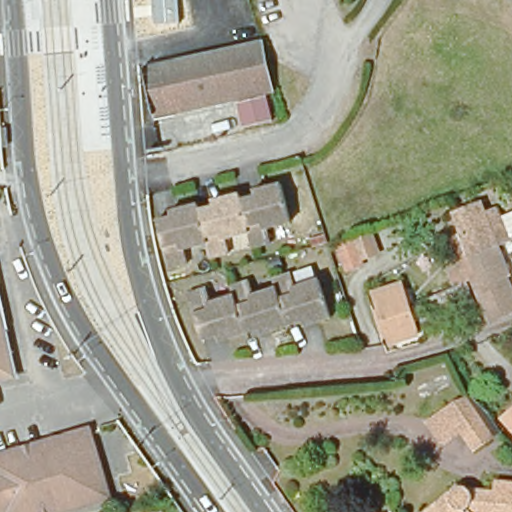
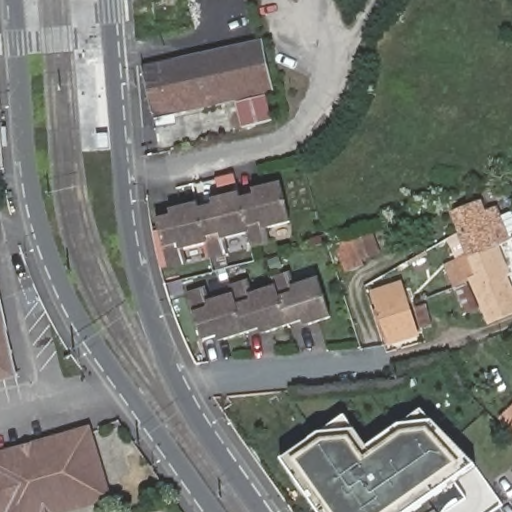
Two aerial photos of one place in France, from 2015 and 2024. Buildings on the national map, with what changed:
unchanged [(168,58),(180,55),(184,54),(191,53),(252,39),(258,38),(262,36),(273,85),(155,111),(144,63),(168,58)]
unchanged [(266,91),(272,116),(242,124),(236,100),(266,91)]
unchanged [(171,218),(170,212),(197,206),(199,211),(212,208),(211,202),(239,195),(241,200),(254,197),(252,191),(281,185),(292,225),(264,233),(262,226),(248,229),(250,235),(222,243),(221,237),(206,240),(207,246),(182,253),(181,247),(164,251),(156,222),(171,218)]
unchanged [(442,273),(464,265),(455,242),(447,221),(478,209),(483,220),(495,216),(502,234),(491,239),(497,252),(512,293),(512,314),(487,324),(483,313),(461,322),(451,297),(442,273)]
unchanged [(329,249),(343,244),(365,236),(372,256),(350,264),(352,268),(337,273),(329,249)]
unchanged [(194,310),(208,305),(206,299),(235,291),(237,302),(250,297),(249,292),(277,283),(280,294),(292,289),(291,284),(320,275),(332,315),(304,325),(302,320),(288,324),(260,328),(246,332),(240,333),(219,340),(217,334),(202,339),(194,310)]
unchanged [(370,297),(404,287),(420,334),(386,346),(370,297)]
unchanged [(0,372),(0,338),(7,370),(0,372)]
unchanged [(277,400),(282,397),(285,403),(281,406),(277,400)]
demolished [(457,419),(467,409),(492,431),(482,441),(467,427),(457,419)]
new [(355,430),(367,448),(381,439),(385,446),(418,424),(432,423),(475,467),(444,490),(438,481),(407,504),(412,511),(411,512),(318,512),(282,460),(319,434),(355,430)]
unchanged [(77,430),(91,477),(96,494),(37,512),(3,512),(1,503),(82,480),(70,433),(0,454),(0,448),(76,426),(77,430)]
unchanged [(82,480),(1,503),(3,512),(0,512),(0,454),(70,433),(82,480)]
demolished [(436,506),(434,503),(433,499),(433,496),(435,492),(438,487),(442,486),(444,485),(448,485),(451,486),(453,488),(456,490),(457,492),(481,492),(482,482),(512,484),(512,512),(428,512),(436,506)]

